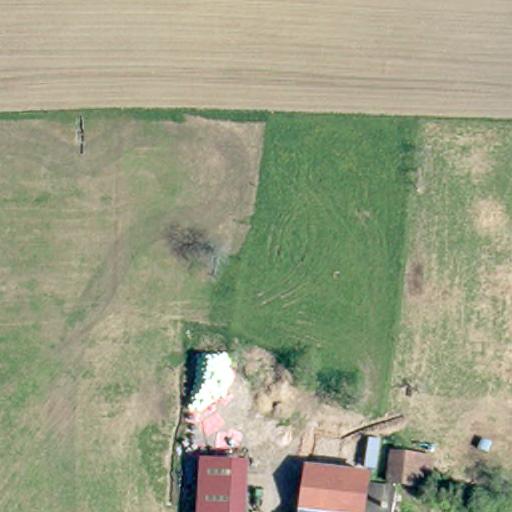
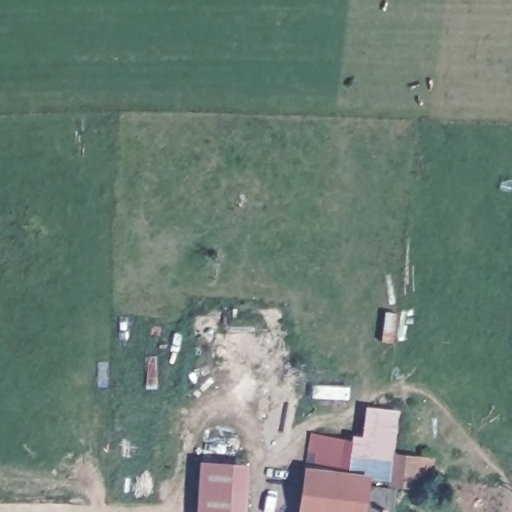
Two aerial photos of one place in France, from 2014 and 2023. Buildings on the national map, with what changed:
new [(352,440),(353,434),(364,437),(368,406),(399,411),(394,453),(401,453),(400,484),(405,484),(405,489),(400,488),(378,484),(379,476),(361,474),(342,471),(347,439),(352,440)]
new [(314,467),(305,464),(312,432),(347,439),(342,471),(314,467)]
unchanged [(438,457),(439,487),(400,484),(401,453),(438,457)]
unchanged [(250,461),(247,512),(196,512),(200,463),(250,461)]
unchanged [(405,489),(401,512),(307,512),(314,467),(361,474),(379,476),(378,484),(400,488),(405,489)]

